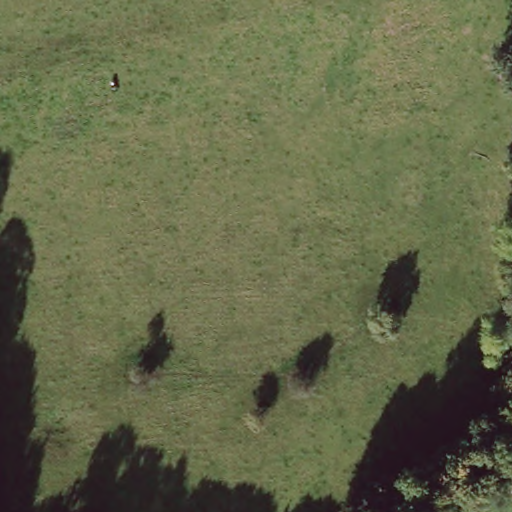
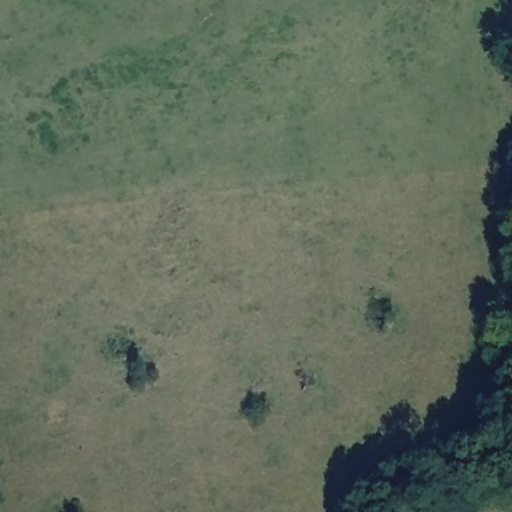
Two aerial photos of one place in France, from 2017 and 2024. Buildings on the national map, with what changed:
[]

